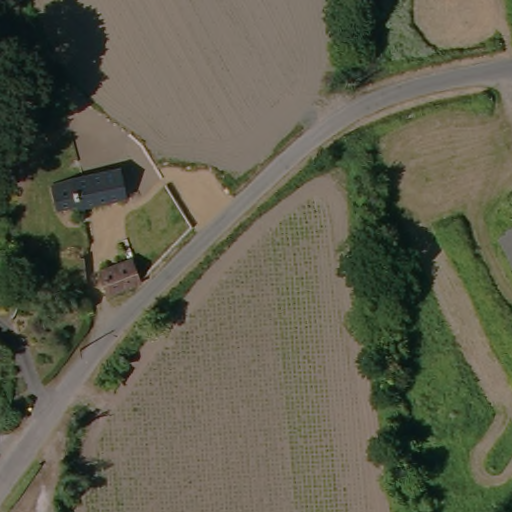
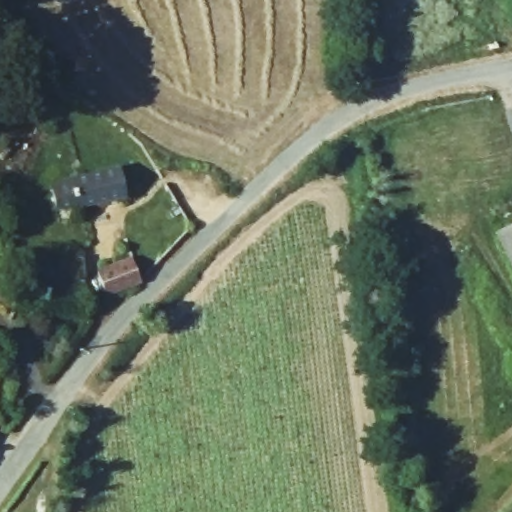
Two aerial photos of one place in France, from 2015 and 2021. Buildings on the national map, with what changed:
unchanged [(125,197),(78,208),(78,207),(78,200),(58,204),(58,194),(74,191),(73,188),(71,179),(119,170),(125,197)]
unchanged [(499,228),(512,223),(512,260),(499,228)]
unchanged [(133,264),(140,283),(114,295),(105,275),(133,264)]

